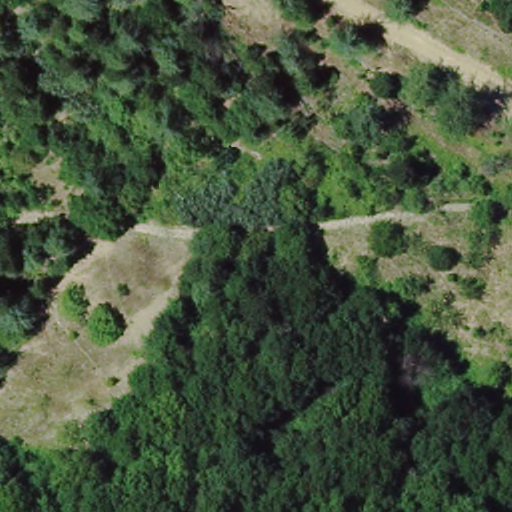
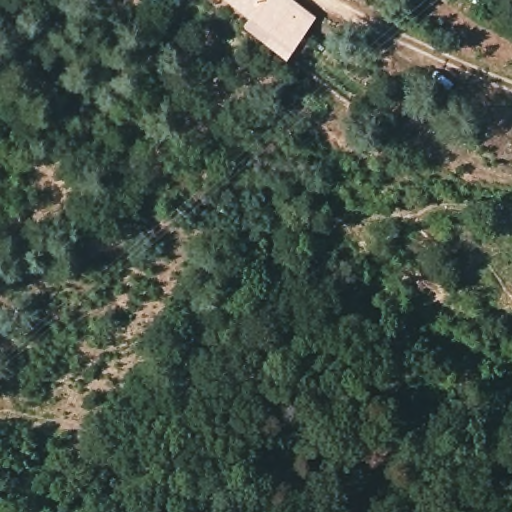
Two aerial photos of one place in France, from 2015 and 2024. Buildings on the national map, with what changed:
new [(282,57),(240,24),(247,17),(224,0),(291,0),(313,17),(282,57)]

